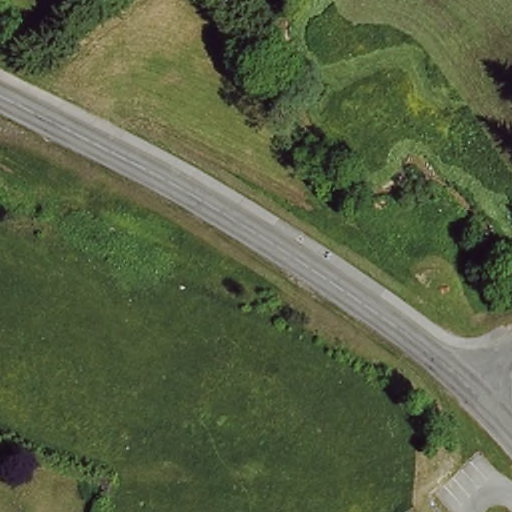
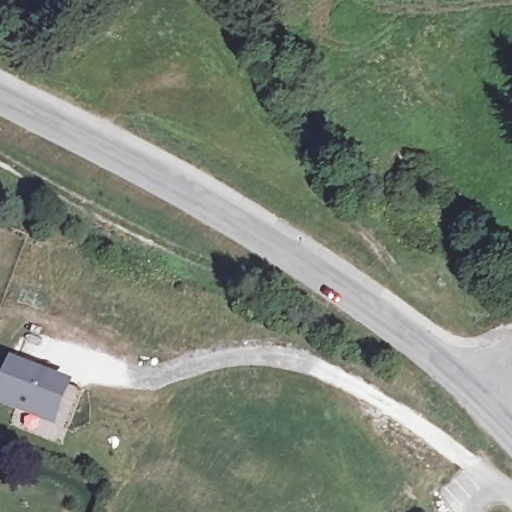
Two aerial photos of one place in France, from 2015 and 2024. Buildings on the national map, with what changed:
new [(75,381),(56,429),(0,408),(0,385),(11,357),(75,381)]

